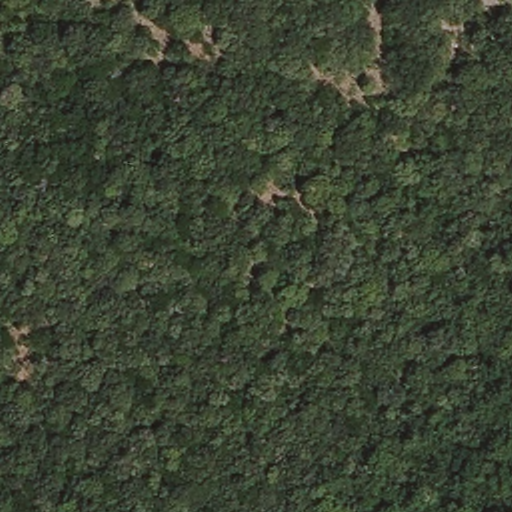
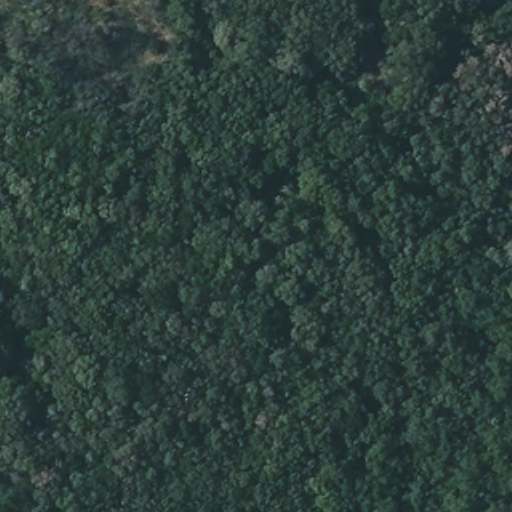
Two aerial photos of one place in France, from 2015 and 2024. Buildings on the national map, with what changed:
[]

